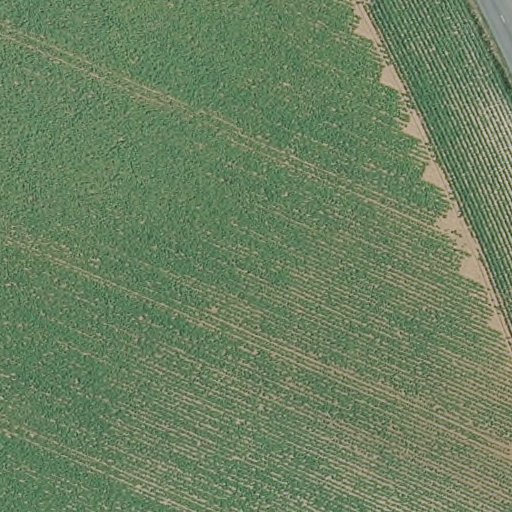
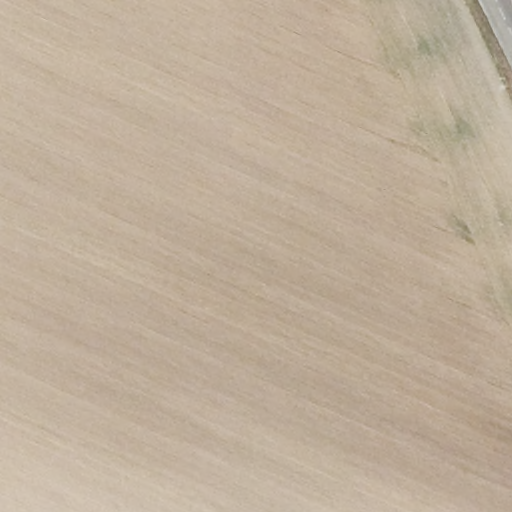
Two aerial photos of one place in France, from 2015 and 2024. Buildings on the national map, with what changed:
[]

